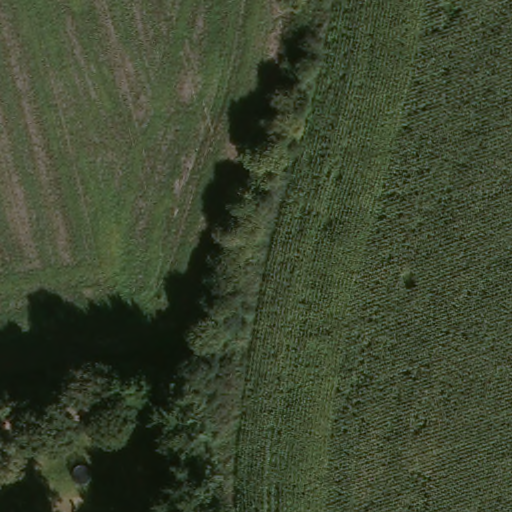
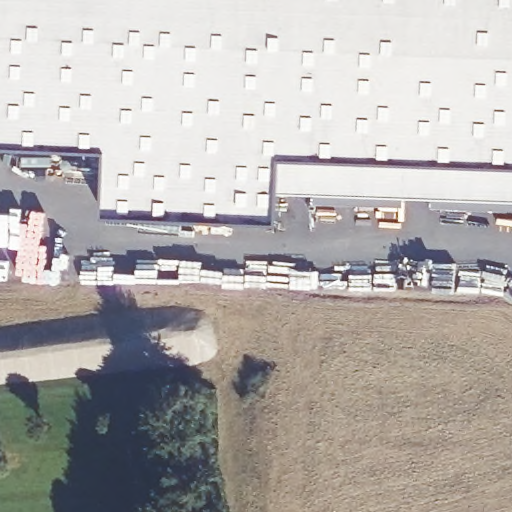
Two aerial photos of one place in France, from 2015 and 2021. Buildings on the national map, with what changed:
new [(280,182),(280,217),(108,210),(110,143),(0,140),(0,0),(512,0),(512,194),(280,182)]

